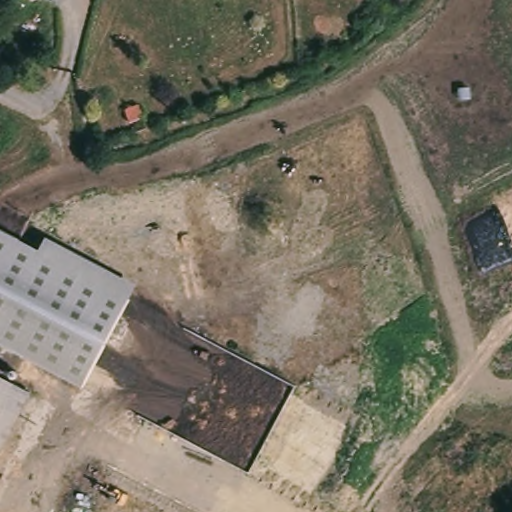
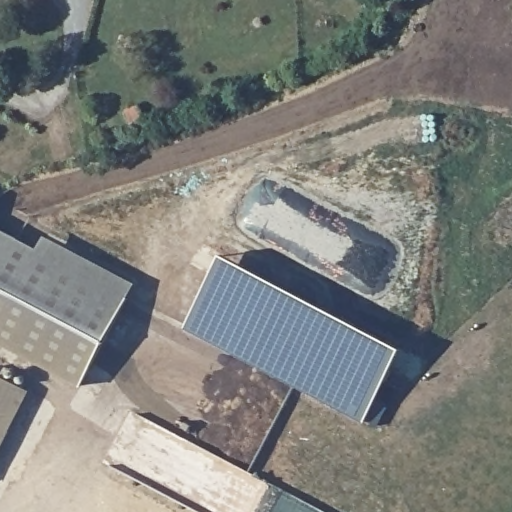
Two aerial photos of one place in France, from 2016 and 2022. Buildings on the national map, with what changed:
unchanged [(49,236),(140,283),(86,388),(0,343),(0,227),(41,249),(49,236)]
new [(376,427),(365,421),(187,327),(226,255),(403,348),(375,401),(387,407),(376,427)]
unchanged [(0,445),(0,379),(27,393),(0,445)]

